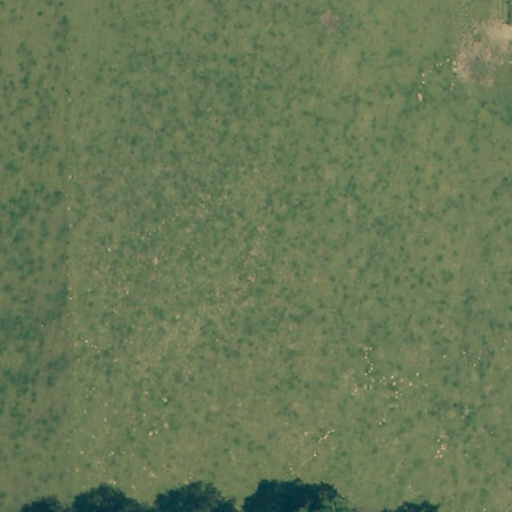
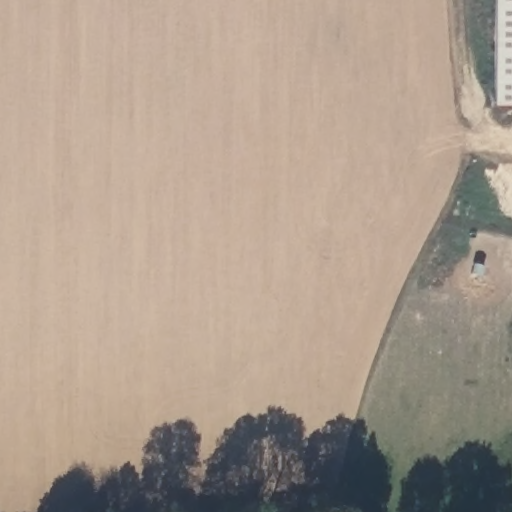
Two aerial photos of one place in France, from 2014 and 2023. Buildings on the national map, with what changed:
new [(494,104),(494,0),(512,0),(512,103),(494,104)]

